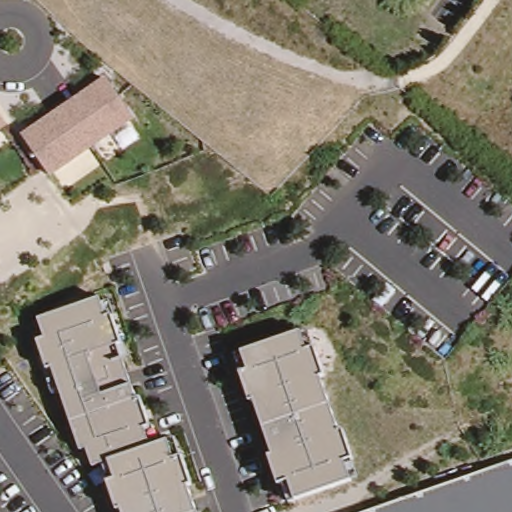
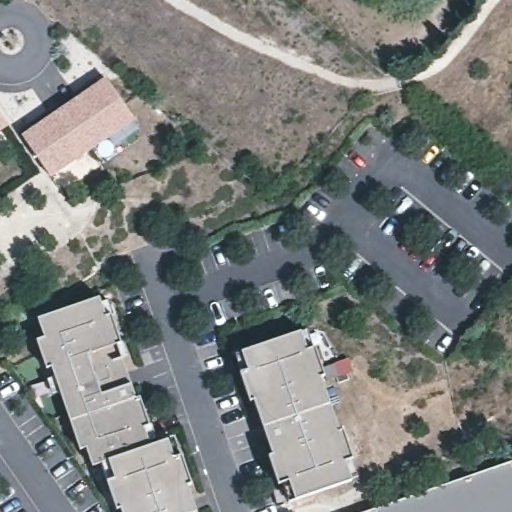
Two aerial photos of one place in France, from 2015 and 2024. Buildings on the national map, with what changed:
unchanged [(20,139),(102,80),(131,125),(48,184),(20,139)]
unchanged [(2,132),(0,133),(0,129),(2,132)]
unchanged [(119,512),(116,512),(110,512),(102,484),(110,482),(105,462),(90,467),(84,451),(76,454),(50,371),(41,373),(32,343),(41,339),(35,322),(96,298),(102,317),(109,313),(118,347),(112,349),(125,386),(132,384),(146,427),(143,429),(149,446),(171,438),(194,512),(119,512)]
unchanged [(289,480),(276,485),(267,460),(271,457),(254,402),(247,405),(237,377),(244,373),(238,355),(300,333),(304,351),(311,349),(335,437),(340,436),(351,485),(295,502),(289,480)]
unchanged [(512,461),(512,512),(371,512),(512,461)]

